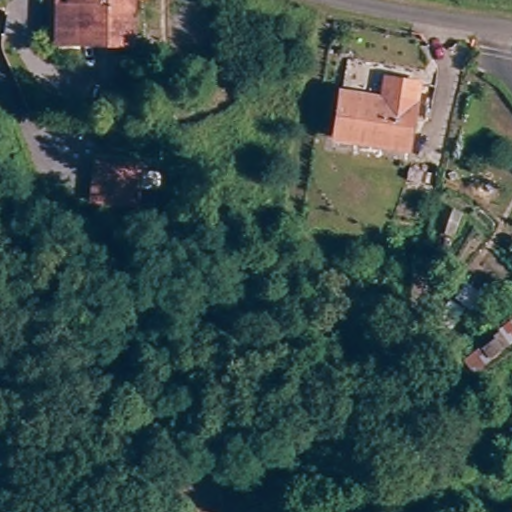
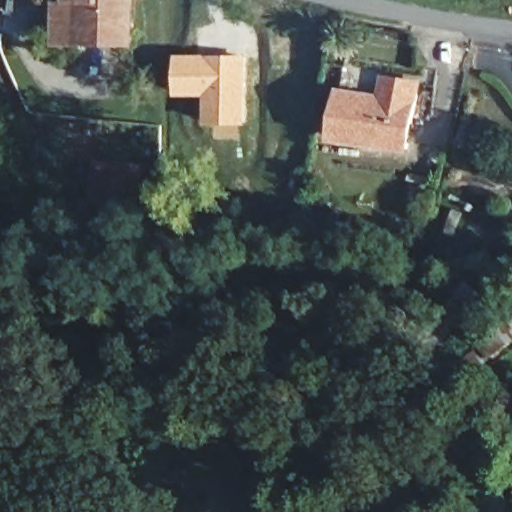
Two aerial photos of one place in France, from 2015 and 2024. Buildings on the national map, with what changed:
unchanged [(68,0),(132,0),(129,45),(80,41),(67,41),(68,0)]
new [(175,54),(247,55),(247,125),(205,125),(204,96),(175,96),(175,54)]
unchanged [(401,152),(333,139),(342,96),(384,104),(387,87),(415,92),(418,92),(407,153),(401,152)]
unchanged [(88,206),(92,171),(94,160),(146,166),(145,177),(141,212),(88,206)]
unchanged [(512,315),(512,346),(470,375),(460,355),(512,315)]
unchanged [(397,345),(394,388),(385,387),(387,344),(397,345)]
unchanged [(375,492),(378,512),(351,512),(347,499),(375,492)]

